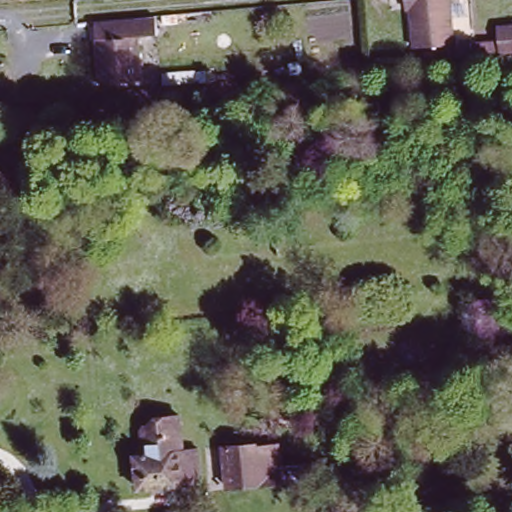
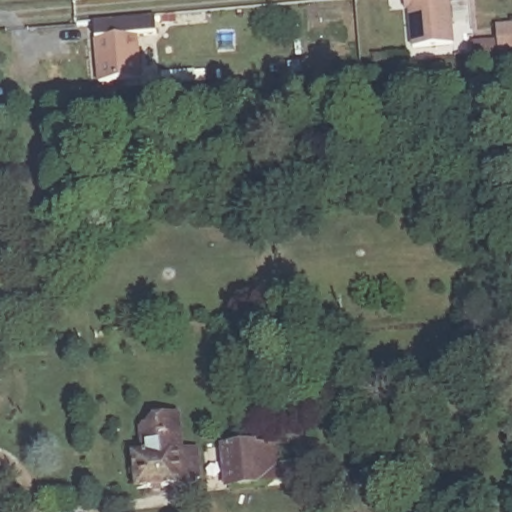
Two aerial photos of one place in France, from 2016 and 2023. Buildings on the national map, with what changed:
unchanged [(460,46),(420,49),(417,9),(412,10),(411,3),(411,0),(456,0),(460,46)]
unchanged [(157,17),(157,36),(139,37),(142,79),(102,83),(95,22),(157,17)]
unchanged [(512,34),(512,59),(501,60),(499,34),(512,34)]
unchanged [(184,415),(185,415),(187,451),(202,450),(205,479),(200,484),(140,490),(137,458),(147,457),(145,427),(162,425),(162,417),(184,415)]
unchanged [(277,436),(280,460),(318,457),(320,475),(239,483),(229,484),(225,441),(254,438),(277,436)]

